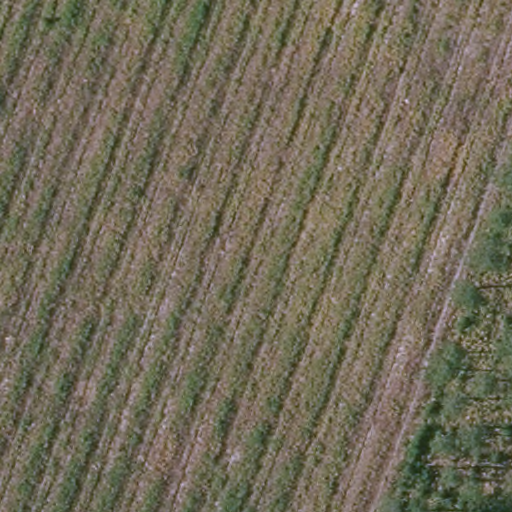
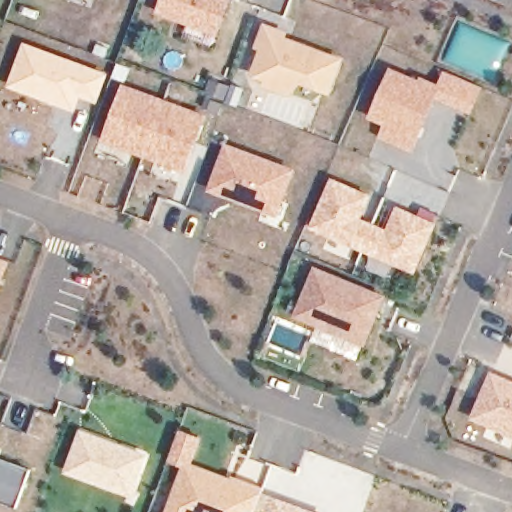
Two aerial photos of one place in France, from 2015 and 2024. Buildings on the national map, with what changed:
new [(156,13),(160,0),(230,0),(218,36),(156,13)]
new [(291,31),(288,37),(345,59),(332,95),(301,84),(293,96),(263,85),(266,80),(251,75),(260,49),(255,47),(264,22),(291,31)]
new [(22,40),(109,72),(97,104),(80,97),(74,111),(5,85),(22,40)]
new [(419,79),(421,75),(440,84),(446,70),(483,87),(473,113),(436,97),(413,152),(380,139),(386,124),(370,117),(392,67),(419,79)]
new [(207,115),(187,172),(100,141),(122,84),(207,115)]
new [(296,169),(279,216),(207,190),(226,142),(296,169)]
new [(371,195),(362,217),(387,229),(397,205),(437,222),(415,275),(309,228),(332,176),(371,195)]
new [(9,260),(0,287),(0,257),(9,260)]
new [(313,265),(387,295),(367,346),(294,315),(313,265)]
new [(512,437),(471,420),(491,371),(512,380),(512,437)]
new [(148,454),(132,496),(64,472),(81,429),(148,454)]
new [(200,437),(191,461),(232,477),(233,474),(265,487),(263,491),(319,512),(165,512),(182,465),(168,460),(180,430),(200,437)]
new [(29,471),(17,505),(0,499),(0,461),(29,471)]

